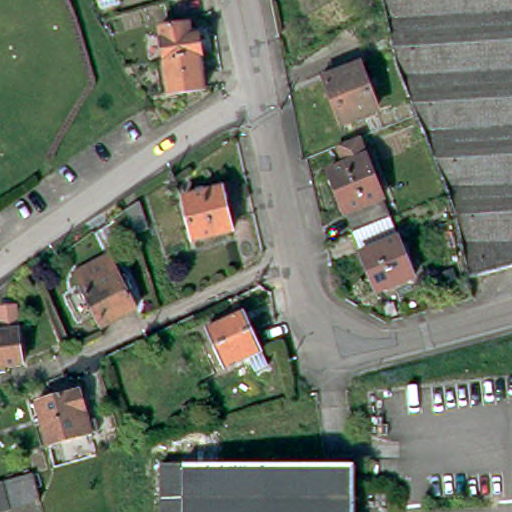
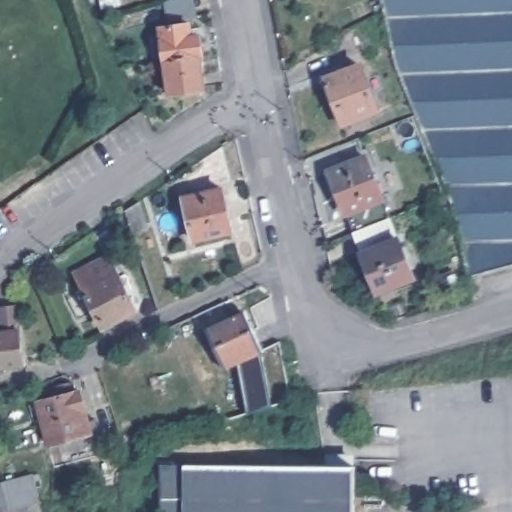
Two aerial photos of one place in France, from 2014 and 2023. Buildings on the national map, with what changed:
unchanged [(511,265),(470,276),(464,261),(455,220),(449,195),(444,178),(442,173),(427,138),(416,113),(410,98),(401,76),(396,58),(393,48),(382,3),(381,0),(512,0),(512,265),(511,265)]
unchanged [(160,25),(191,20),(193,34),(201,33),(204,52),(200,53),(165,59),(160,25)]
unchanged [(200,53),(206,85),(170,92),(165,59),(200,53)]
unchanged [(375,109),(341,124),(324,81),(321,75),(336,68),(339,75),(358,66),(375,109)]
unchanged [(358,134),(390,214),(354,227),(329,166),(345,159),(337,142),(358,134)]
unchanged [(225,189),(233,232),(195,240),(186,197),(225,189)]
unchanged [(138,204),(147,232),(133,237),(125,213),(138,204)]
unchanged [(354,227),(390,214),(415,274),(378,288),(353,228),(354,227)]
unchanged [(102,323),(79,277),(114,260),(136,306),(102,323)]
unchanged [(18,328),(6,329),(2,303),(15,301),(18,328)]
unchanged [(271,362),(257,370),(249,355),(226,367),(205,326),(242,307),(271,362)]
unchanged [(22,365),(0,368),(0,334),(19,332),(22,365)]
unchanged [(48,394),(45,384),(62,380),(70,381),(72,389),(75,388),(84,418),(91,417),(94,428),(43,442),(33,398),(48,394)]
unchanged [(164,463),(170,463),(201,463),(217,463),(260,464),(275,464),(302,464),(342,464),(350,464),(351,482),(350,512),(156,512),(157,463),(164,463)]
unchanged [(32,475),(39,503),(7,512),(0,512),(0,484),(32,475)]

